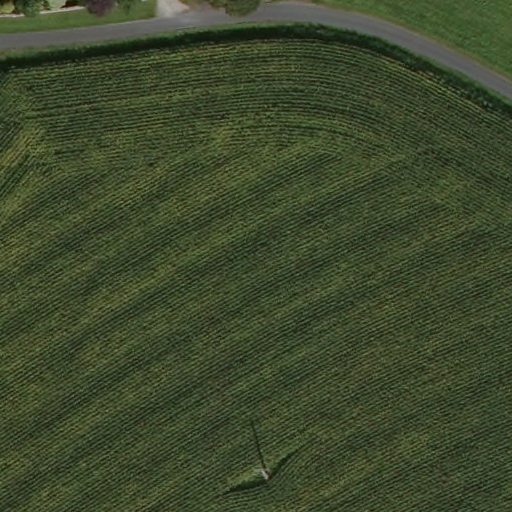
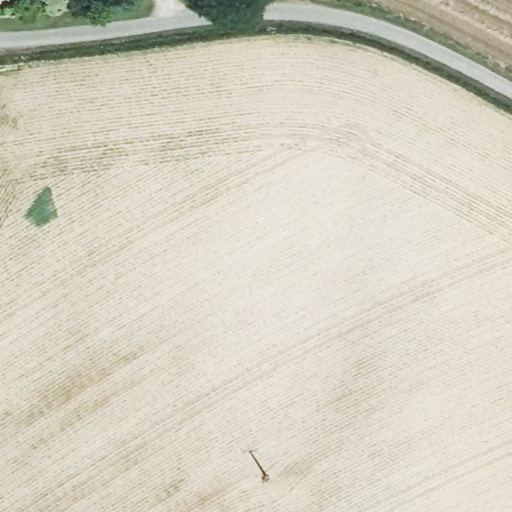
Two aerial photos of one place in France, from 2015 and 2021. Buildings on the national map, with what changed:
[]

